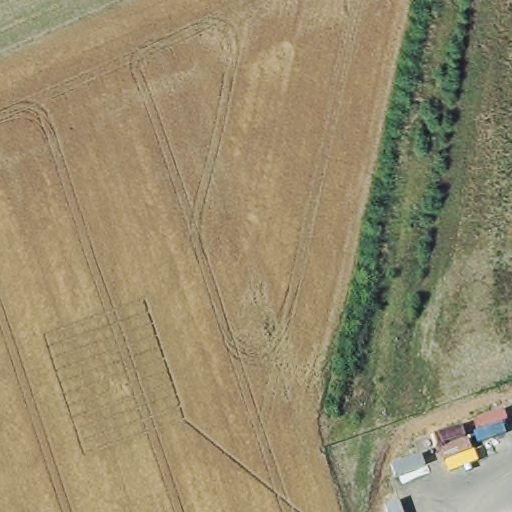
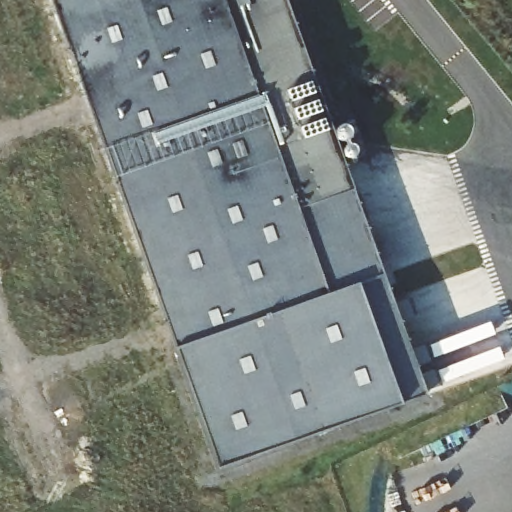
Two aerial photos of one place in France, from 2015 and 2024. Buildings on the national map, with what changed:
new [(291,210),(321,296),(385,276),(426,398),(212,472),(46,0),(280,0),(348,191),(291,210)]
new [(385,276),(321,296),(291,210),(348,191),(385,276)]

